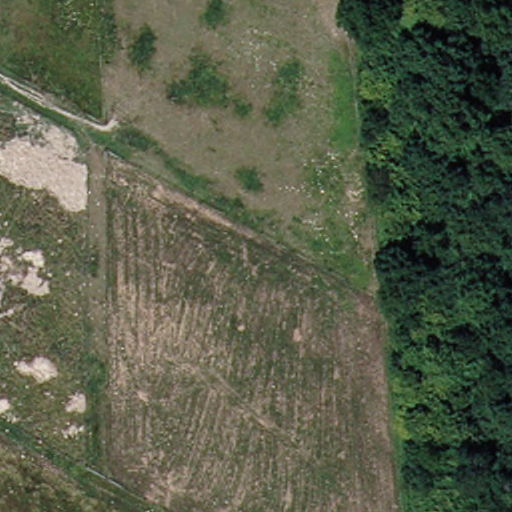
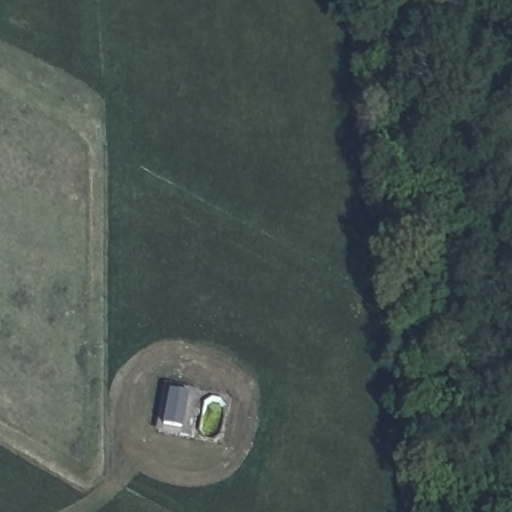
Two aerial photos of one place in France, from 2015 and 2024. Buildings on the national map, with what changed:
new [(155,428),(163,385),(198,391),(191,432),(155,428)]

